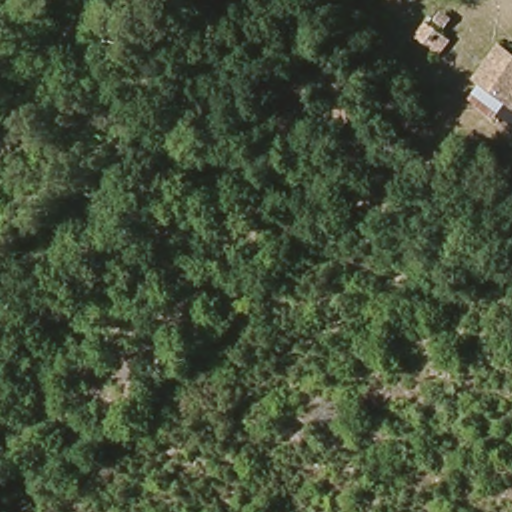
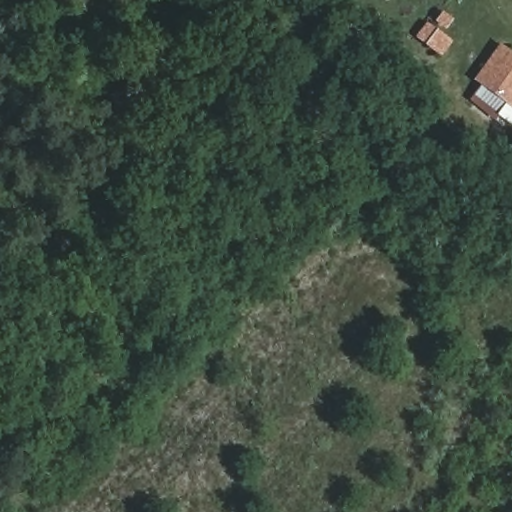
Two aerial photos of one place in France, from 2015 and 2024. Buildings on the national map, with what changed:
unchanged [(460,12),(452,21),(443,14),(450,6),(460,12)]
unchanged [(455,35),(447,45),(425,27),(434,18),(455,35)]
unchanged [(472,82),(491,58),(500,48),(512,58),(512,112),(472,82)]

